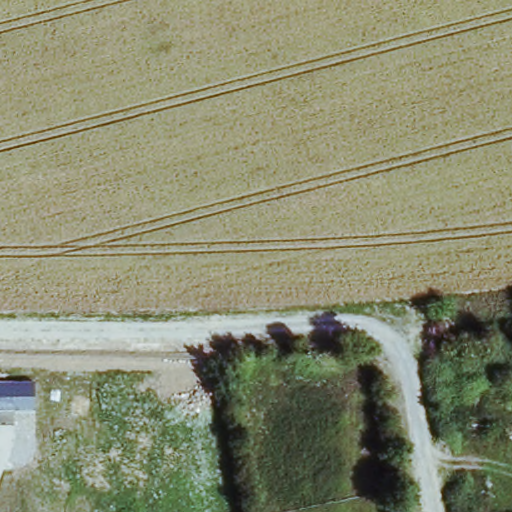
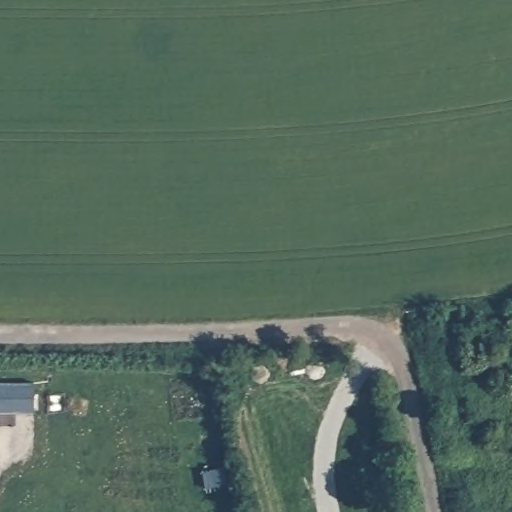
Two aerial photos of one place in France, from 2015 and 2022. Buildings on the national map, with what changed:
unchanged [(35,412),(0,411),(0,381),(35,381),(35,412)]

